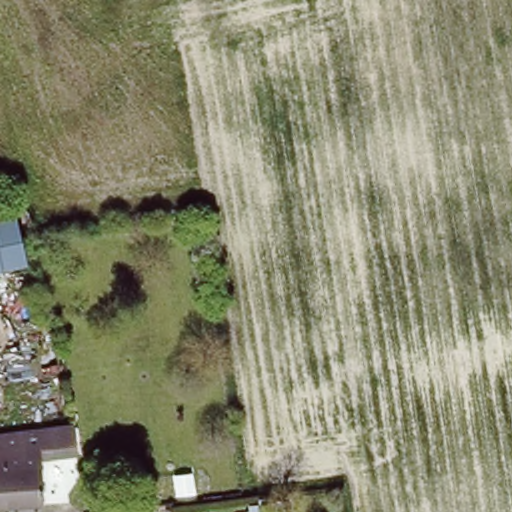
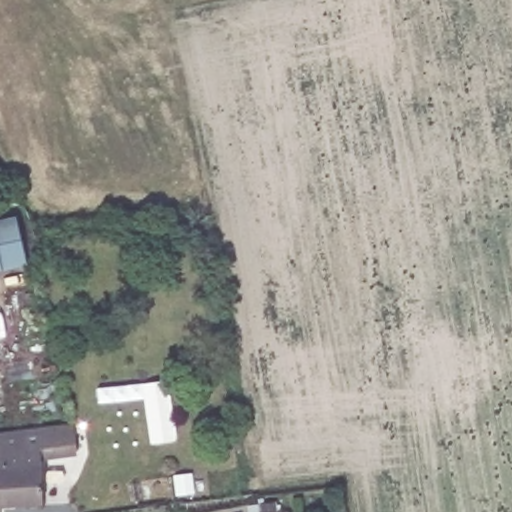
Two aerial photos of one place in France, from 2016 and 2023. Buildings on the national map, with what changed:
unchanged [(16,213),(26,263),(0,269),(0,216),(16,213)]
unchanged [(0,506),(0,433),(71,425),(75,453),(39,457),(42,504),(0,506)]

